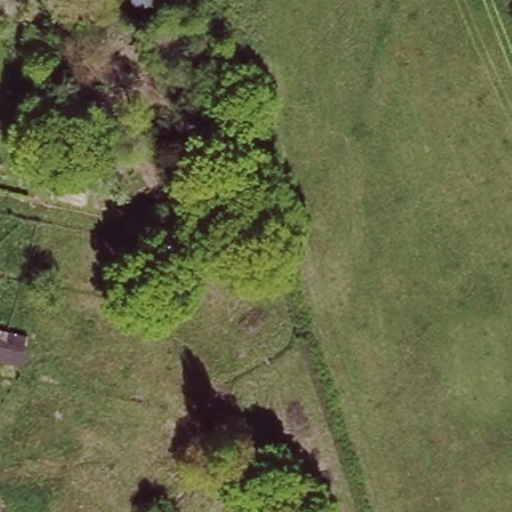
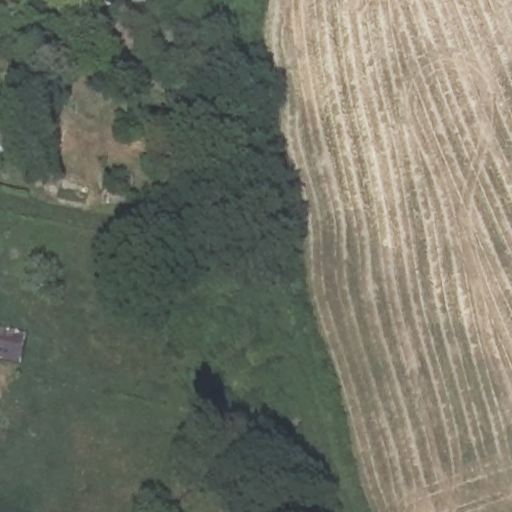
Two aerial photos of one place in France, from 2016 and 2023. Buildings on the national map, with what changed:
unchanged [(125,0),(158,0),(158,14),(126,13),(125,0)]
unchanged [(192,1),(170,3),(169,0),(192,0),(192,1)]
unchanged [(31,334),(27,348),(24,364),(0,359),(0,327),(31,334)]

